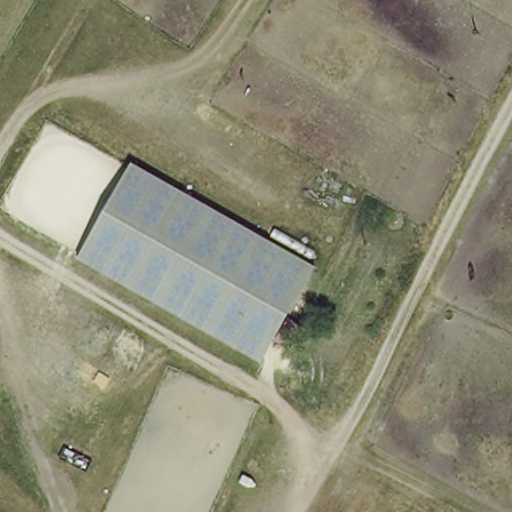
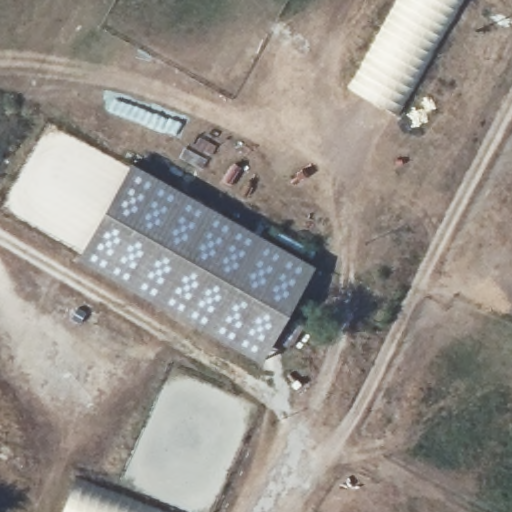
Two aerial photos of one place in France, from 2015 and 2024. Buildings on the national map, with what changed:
new [(396,0),(465,0),(398,117),(345,89),(396,0)]
unchanged [(319,268),(265,364),(78,261),(135,165),(319,268)]
new [(165,512),(61,512),(75,476),(165,512)]

